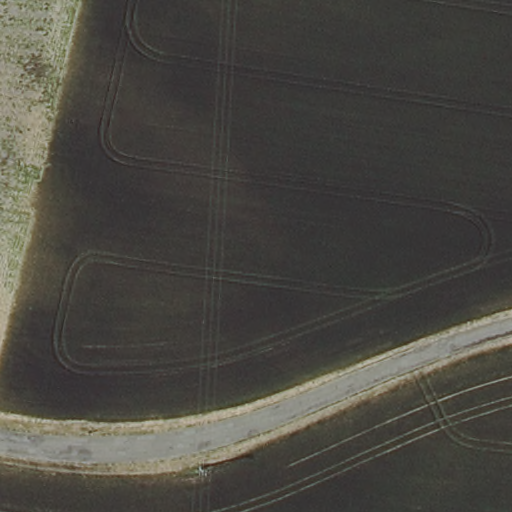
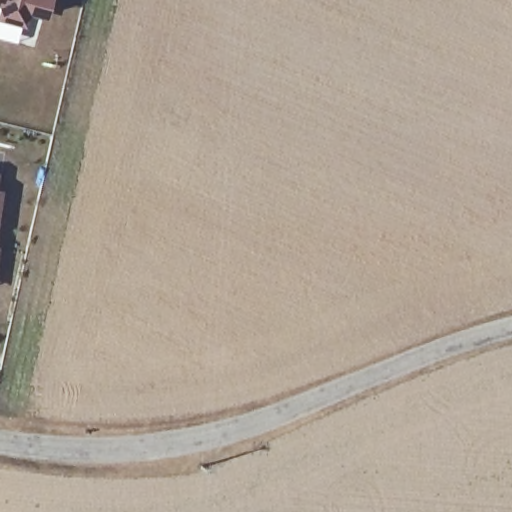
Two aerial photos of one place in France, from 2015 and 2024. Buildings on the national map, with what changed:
new [(25,16),(22,27),(0,22),(0,0),(49,0),(43,20),(25,16)]
new [(3,191),(0,208),(0,191),(3,191)]

